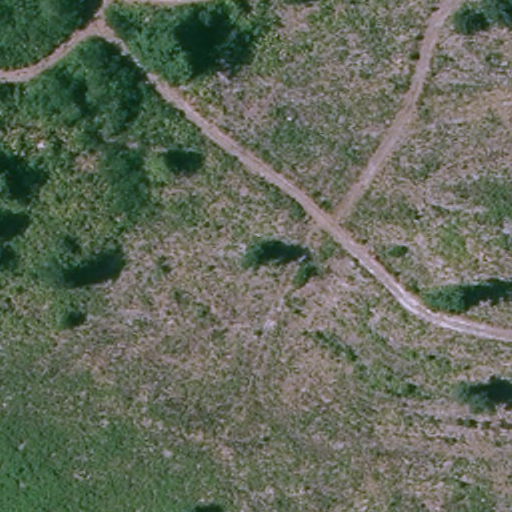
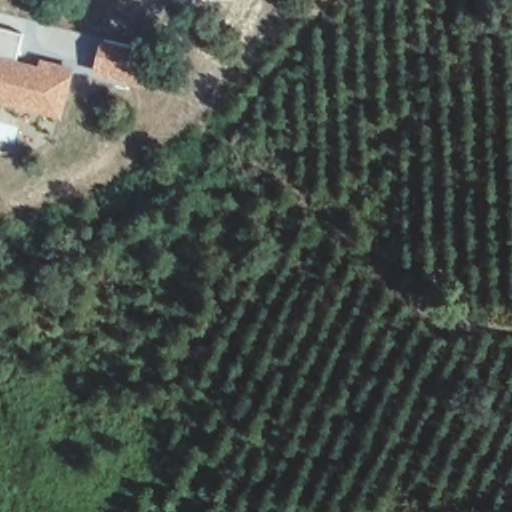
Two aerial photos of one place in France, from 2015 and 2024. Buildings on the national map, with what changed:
new [(24,35),(17,60),(39,66),(41,60),(75,68),(63,119),(0,103),(0,29),(24,35)]
new [(147,49),(140,86),(94,74),(102,39),(147,49)]

